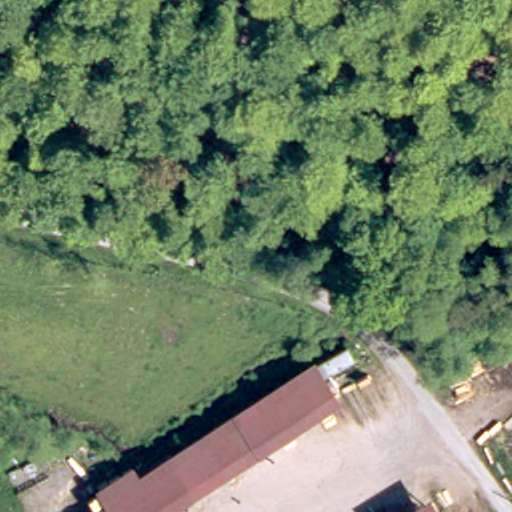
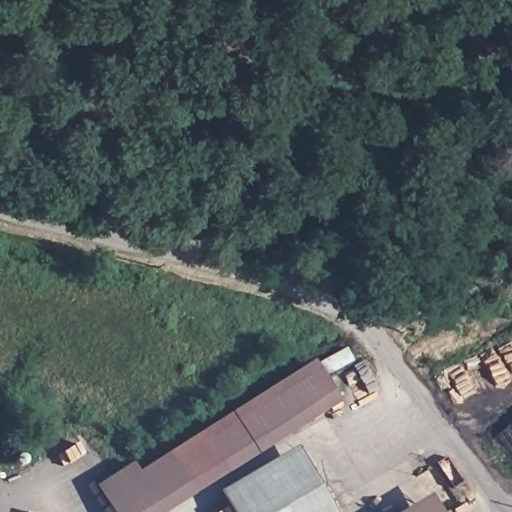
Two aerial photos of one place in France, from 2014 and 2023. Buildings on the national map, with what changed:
unchanged [(315,372),(333,399),(152,512),(124,512),(115,498),(146,478),(315,372)]
new [(231,512),(219,492),(297,445),(336,512),(231,512)]

